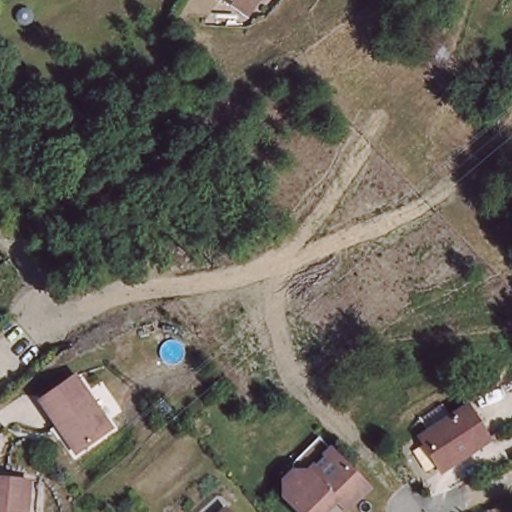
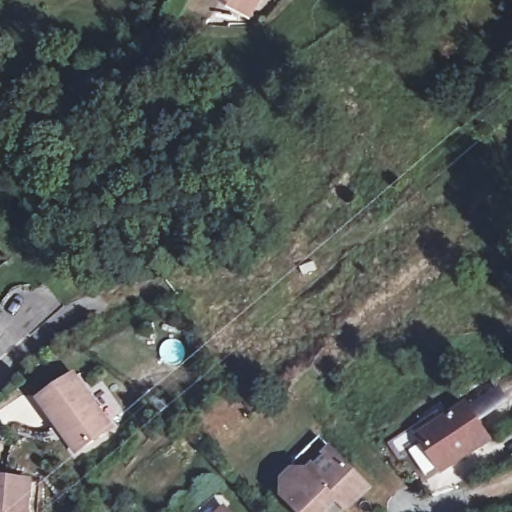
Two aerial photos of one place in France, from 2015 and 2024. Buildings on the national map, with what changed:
unchanged [(251,0),(244,12),(227,0),(251,0)]
unchanged [(75,451),(38,400),(72,375),(109,425),(75,451)]
unchanged [(424,437),(452,416),(469,403),(492,440),(476,450),(445,469),(424,437)]
unchanged [(344,507),(335,500),(330,495),(319,506),(324,512),(297,512),(282,498),(283,476),(320,440),(358,476),(366,485),(344,507)]
unchanged [(28,480),(25,512),(0,512),(0,478),(28,480)]
unchanged [(220,507),(224,512),(214,512),(220,507)]

